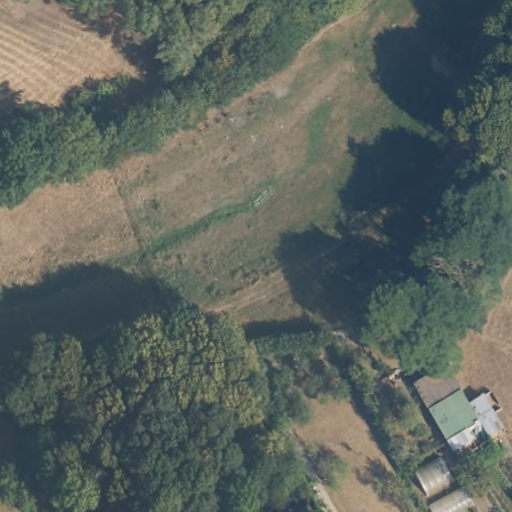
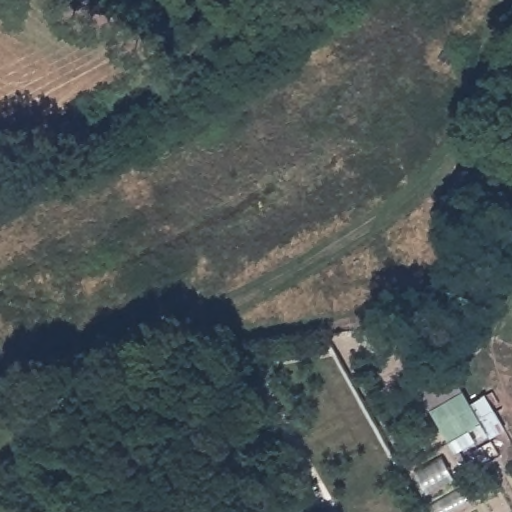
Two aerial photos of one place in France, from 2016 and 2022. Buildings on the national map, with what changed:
unchanged [(415,385),(448,368),(468,403),(487,393),(505,430),(496,434),(492,437),(484,425),(472,432),(474,436),(454,449),(415,385)]

